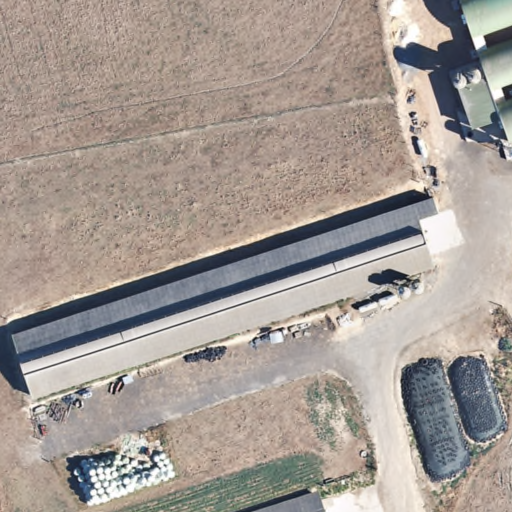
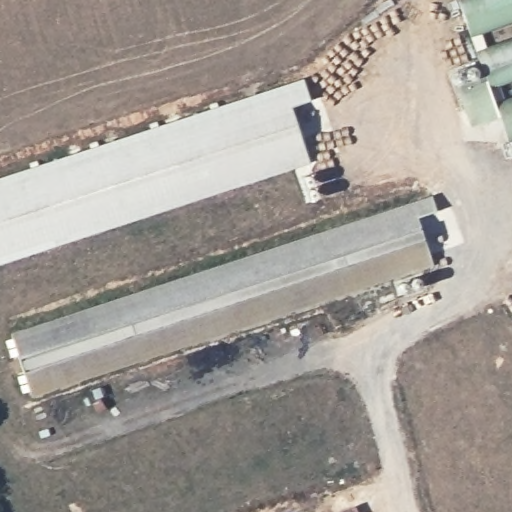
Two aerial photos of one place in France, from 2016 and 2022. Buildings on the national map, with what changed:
unchanged [(474,41),(459,0),(512,0),(512,19),(482,29),(484,38),(478,40),(474,41)]
unchanged [(456,73),(483,66),(478,40),(512,31),(512,73),(498,76),(458,81),(456,73)]
unchanged [(495,108),(468,117),(458,81),(498,76),(501,91),(512,89),(512,131),(503,134),(495,108)]
new [(311,98),(291,106),(312,162),(0,263),(0,177),(304,78),(311,98)]
unchanged [(442,208),(446,223),(423,230),(436,277),(23,387),(6,325),(442,208)]

